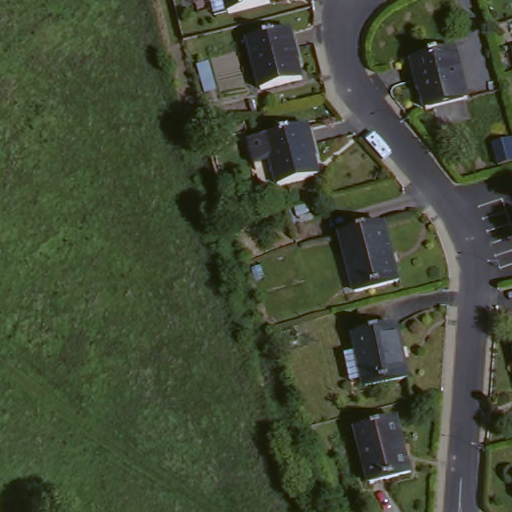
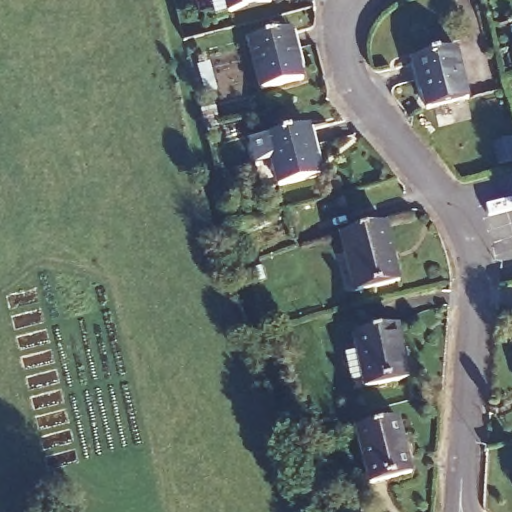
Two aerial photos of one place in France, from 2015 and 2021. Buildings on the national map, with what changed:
unchanged [(226,12),(224,0),(268,0),(268,1),(226,12)]
unchanged [(258,89),(246,37),(288,27),(301,78),(301,79),(258,89)]
unchanged [(421,114),(407,61),(449,52),(462,103),(421,114)]
unchanged [(269,163),(252,168),(246,143),(263,139),(305,129),(318,180),(277,190),(269,163)]
unchanged [(393,285),(349,295),(336,240),(378,229),(393,285)]
unchanged [(406,377),(364,386),(354,334),(396,325),(406,377)]
unchanged [(368,482),(355,429),(396,420),(408,472),(368,482)]

